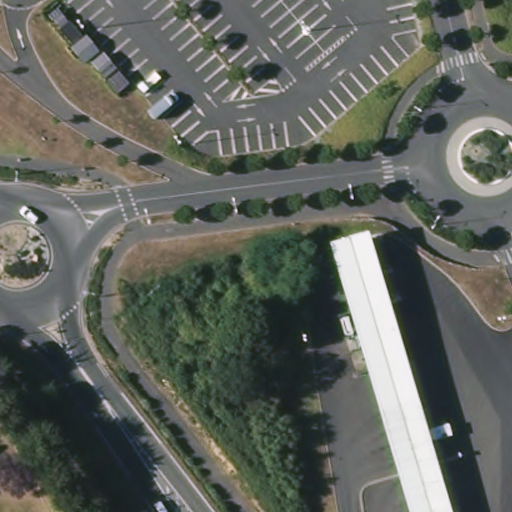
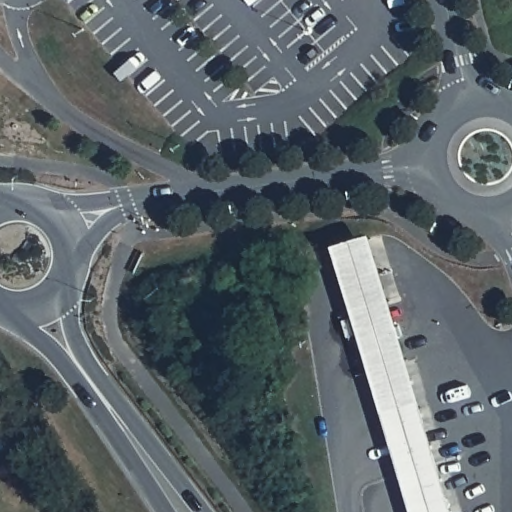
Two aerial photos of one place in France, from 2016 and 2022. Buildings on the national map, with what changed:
unchanged [(333,244),(370,233),(453,512),(411,512),(333,244)]

